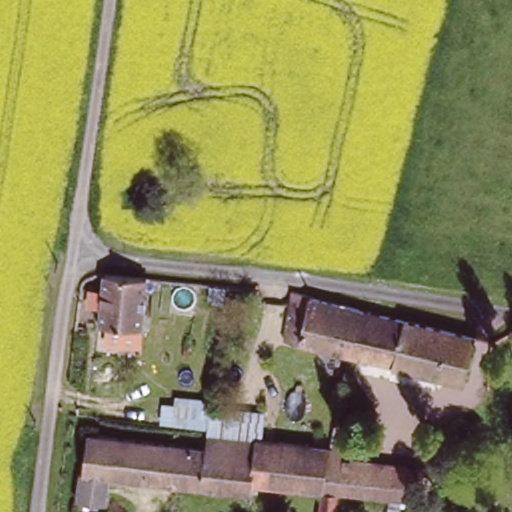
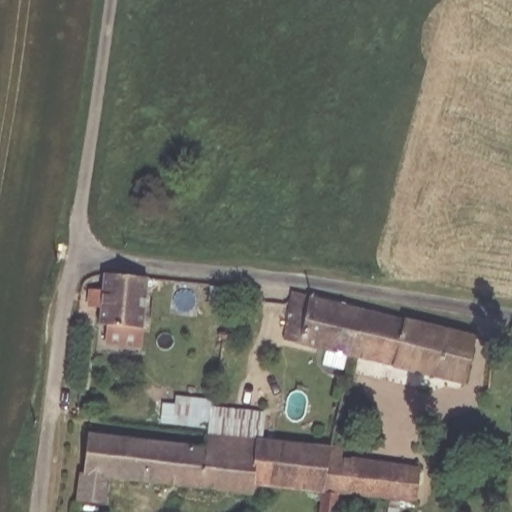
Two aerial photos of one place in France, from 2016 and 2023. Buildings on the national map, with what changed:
unchanged [(139,331),(97,326),(103,280),(146,284),(139,331)]
unchanged [(360,310),(350,357),(284,340),(293,293),(360,310)]
unchanged [(475,340),(463,385),(350,357),(360,310),(475,340)]
unchanged [(260,445),(212,440),(213,433),(214,412),(263,417),(260,445)]
unchanged [(79,505),(82,478),(87,479),(91,437),(211,450),(212,440),(260,445),(332,453),(326,493),(258,483),(256,496),(110,481),(108,507),(79,505)]
unchanged [(343,494),(326,493),(332,453),(332,451),(346,452),(345,461),(422,470),(419,503),(391,500),(343,494)]
unchanged [(323,512),(326,493),(343,494),(340,512),(323,512)]

